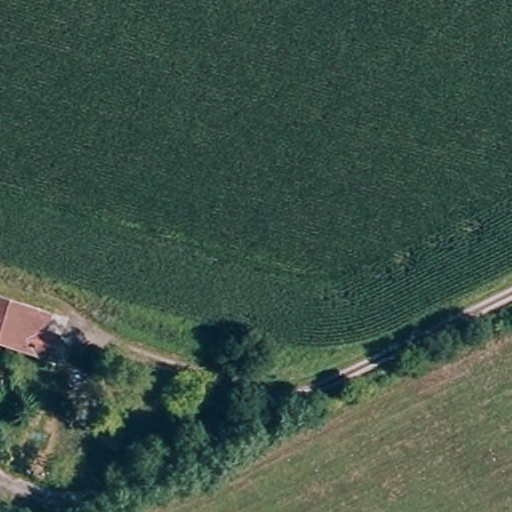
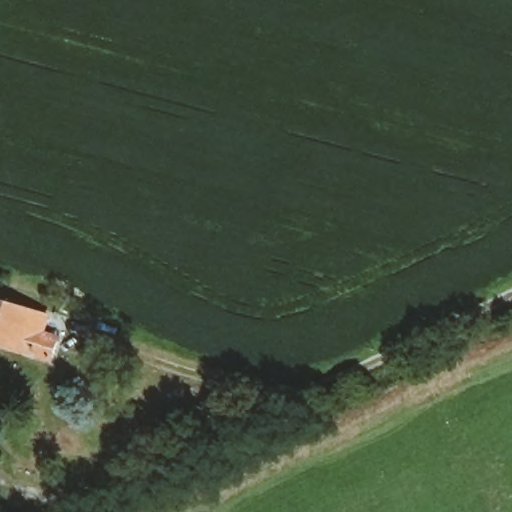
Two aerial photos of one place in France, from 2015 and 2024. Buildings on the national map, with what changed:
unchanged [(45,328),(62,333),(60,339),(55,359),(0,344),(0,299),(49,313),(45,328)]
unchanged [(3,432),(0,431),(0,410),(3,411),(3,432)]
unchanged [(82,469),(96,466),(98,479),(85,482),(82,469)]

